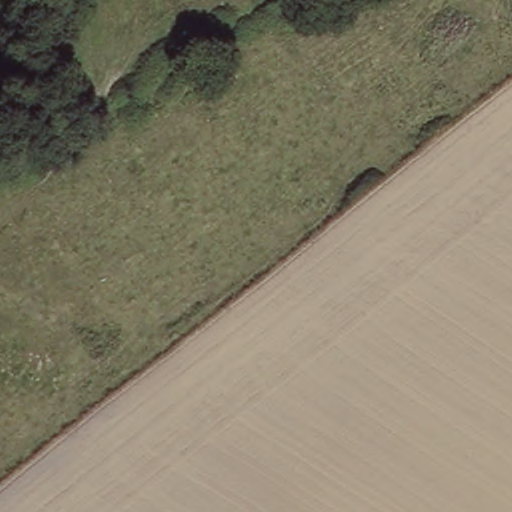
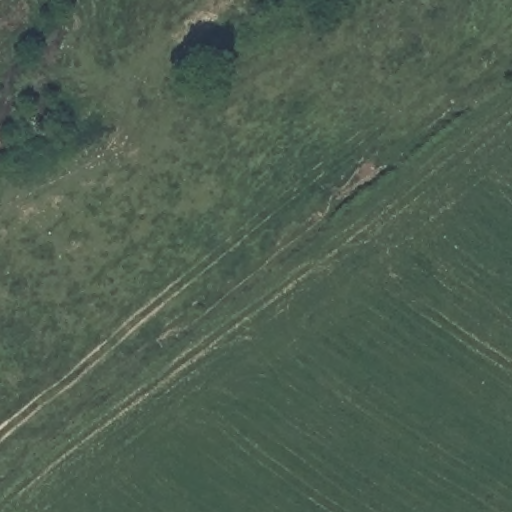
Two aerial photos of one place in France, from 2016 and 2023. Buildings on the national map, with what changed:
[]

